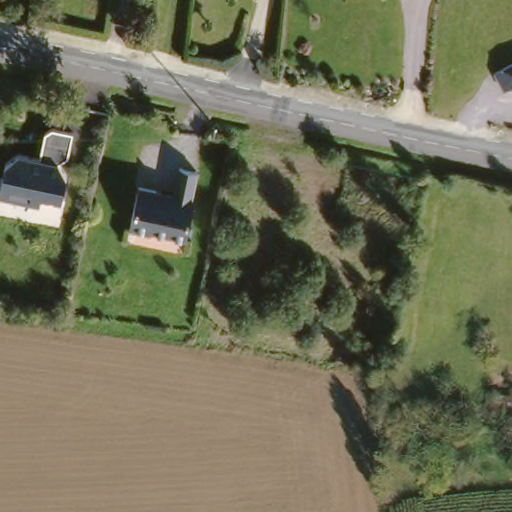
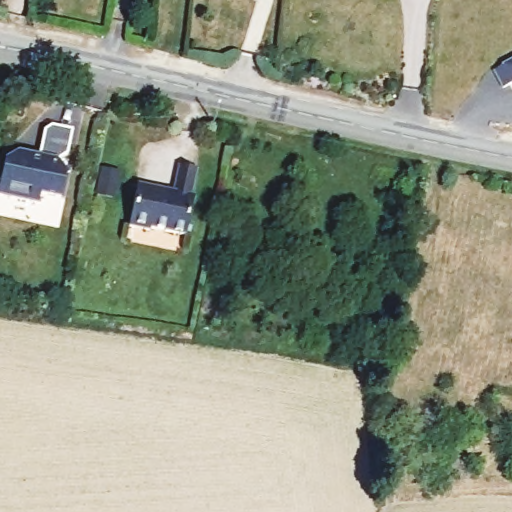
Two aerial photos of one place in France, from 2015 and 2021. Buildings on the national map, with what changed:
unchanged [(491,67),(512,57),(512,81),(502,86),(491,67)]
unchanged [(62,191),(37,187),(33,200),(0,194),(0,177),(6,141),(35,145),(40,121),(70,129),(62,191)]
unchanged [(187,231),(129,220),(135,178),(168,183),(173,160),(197,165),(187,231)]

